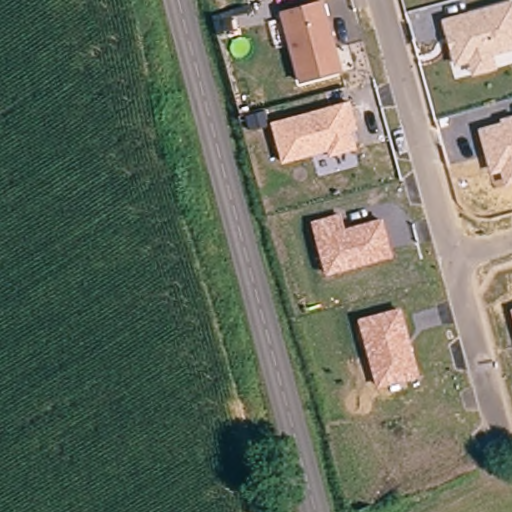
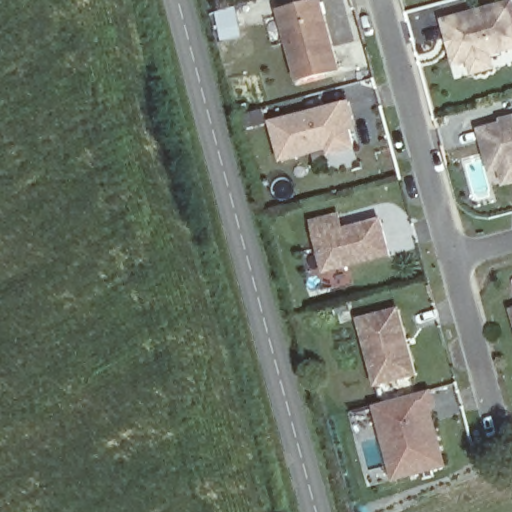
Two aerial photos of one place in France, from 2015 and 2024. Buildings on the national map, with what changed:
unchanged [(285,17),(283,11),(323,0),(325,6),(343,70),(302,81),(285,17)]
unchanged [(512,0),(512,50),(495,56),(499,70),(472,77),(469,64),(455,68),(441,19),(511,0),(512,0)]
unchanged [(351,101),(359,130),(352,132),(358,150),(329,157),(327,152),(282,164),(271,121),(351,101)]
unchanged [(512,119),(512,184),(505,187),(500,173),(491,175),(478,129),(512,119)]
unchanged [(342,212),(346,227),(383,217),(394,257),(326,276),(312,221),(342,212)]
unchanged [(402,307),(422,377),(377,390),(358,319),(402,307)]
unchanged [(512,309),(512,314),(511,309),(512,309)]
new [(438,409),(434,411),(449,467),(394,482),(373,407),(434,390),(438,409)]

